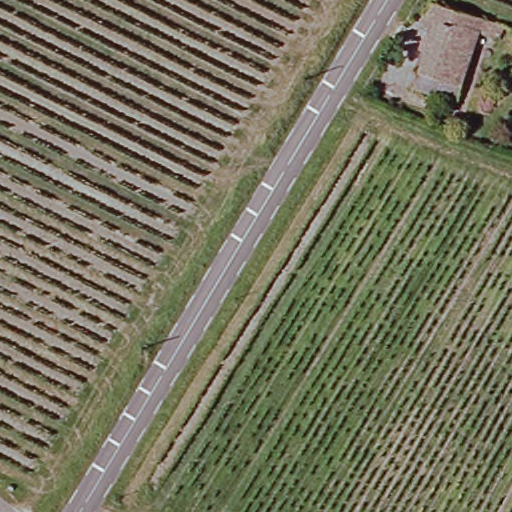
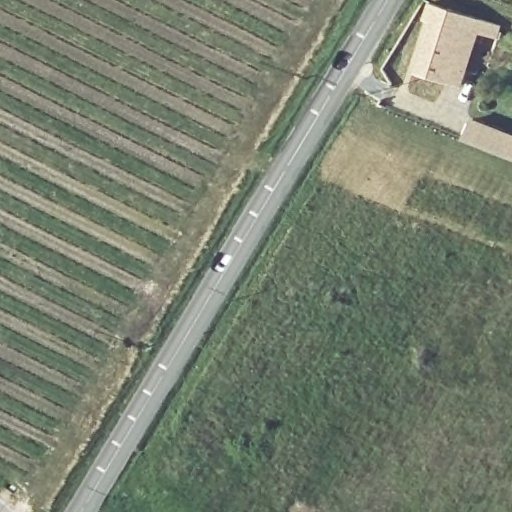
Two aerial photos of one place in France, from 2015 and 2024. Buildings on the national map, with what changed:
unchanged [(402,101),(430,17),(421,14),(426,0),(434,0),(499,22),(491,43),(473,38),(447,115),(402,101)]
new [(466,137),(475,116),(512,131),(512,155),(466,137)]

